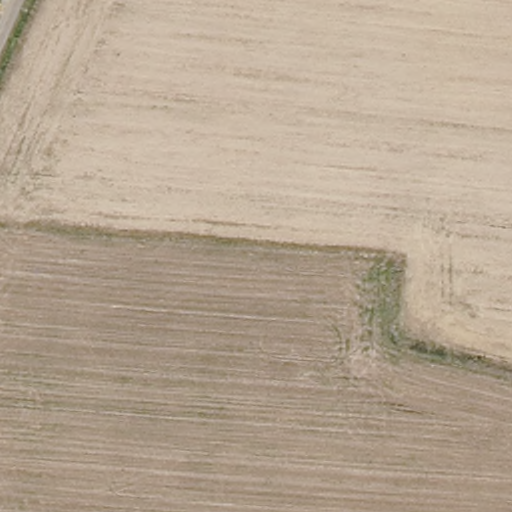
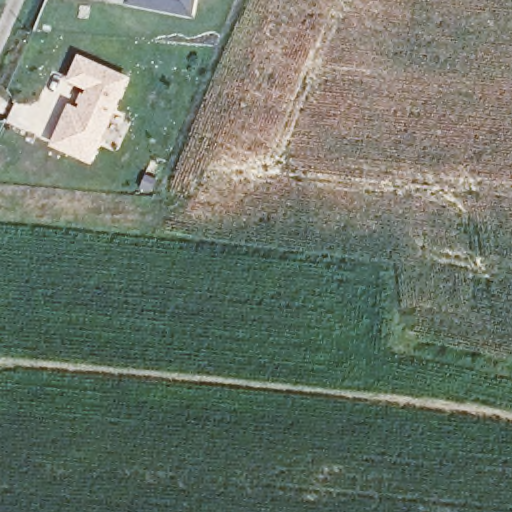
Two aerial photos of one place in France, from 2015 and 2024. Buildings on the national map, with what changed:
new [(123,3),(124,0),(195,0),(192,16),(123,3)]
new [(90,164),(50,145),(67,104),(77,108),(85,90),(67,81),(77,54),(129,76),(90,164)]

